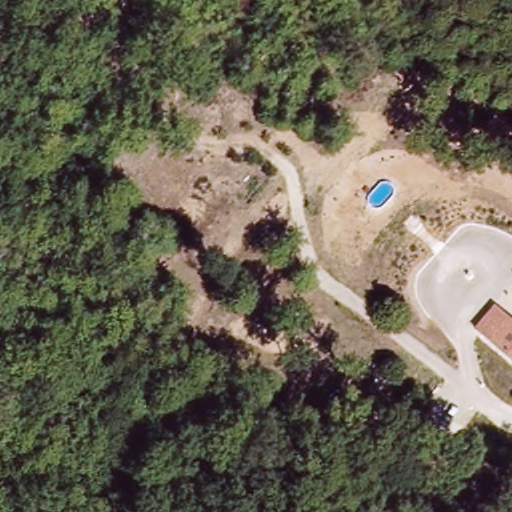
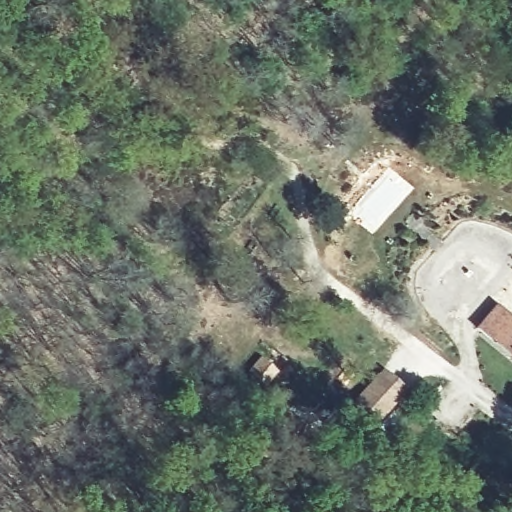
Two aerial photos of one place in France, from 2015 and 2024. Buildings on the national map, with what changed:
unchanged [(495,306),(512,322),(512,359),(477,327),(495,306)]
new [(387,371),(406,387),(378,417),(360,400),(387,371)]

